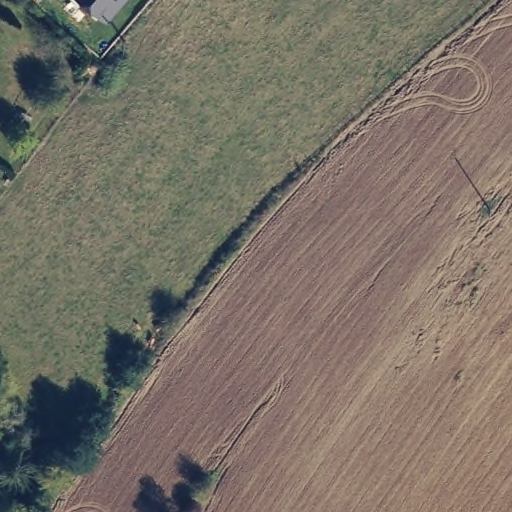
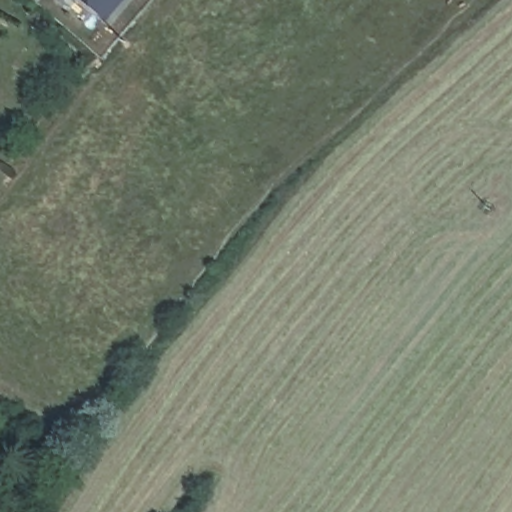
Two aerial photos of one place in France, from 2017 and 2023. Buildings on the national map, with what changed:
unchanged [(109,20),(85,0),(126,0),(109,20)]

